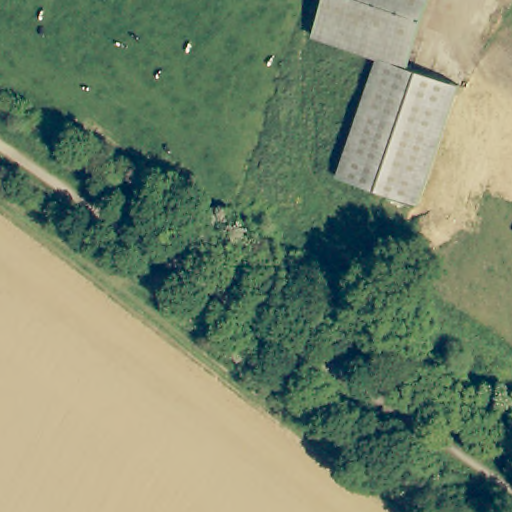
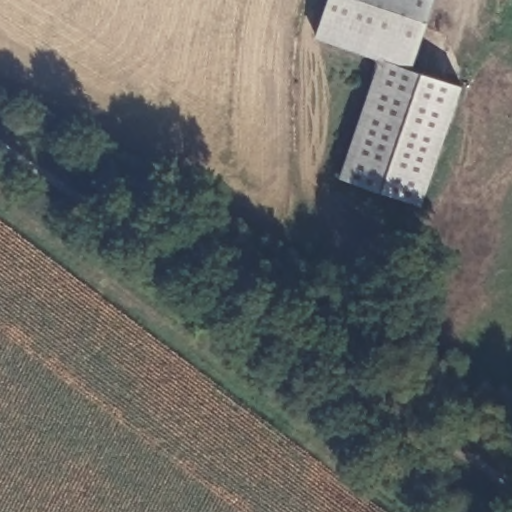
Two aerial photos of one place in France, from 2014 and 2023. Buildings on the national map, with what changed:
unchanged [(428,14),(412,61),(382,51),(316,30),(326,0),(432,0),(428,14)]
unchanged [(412,61),(429,66),(462,77),(423,194),(422,197),(343,171),(382,51),(412,61)]

